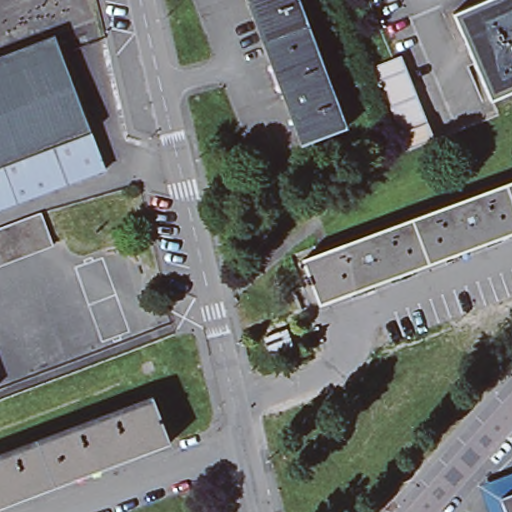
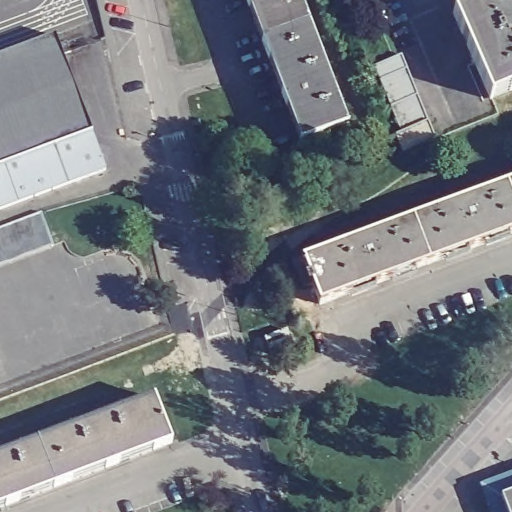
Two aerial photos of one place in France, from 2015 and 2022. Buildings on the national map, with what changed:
unchanged [(348,128),(302,145),(248,0),(300,0),(348,128)]
unchanged [(485,96),(472,63),(465,48),(451,15),(487,0),(512,0),(512,89),(487,100),(485,96)]
unchanged [(53,39),(57,48),(65,45),(67,54),(60,57),(89,137),(0,170),(0,59),(53,39)]
unchanged [(435,144),(402,156),(368,67),(401,55),(435,144)]
unchanged [(102,173),(0,212),(0,170),(89,137),(102,173)]
unchanged [(306,261),(512,183),(512,233),(322,305),(306,261)]
unchanged [(40,212),(52,245),(0,264),(0,227),(40,212)]
unchanged [(290,328),(297,344),(275,353),(268,337),(290,328)]
unchanged [(0,505),(0,453),(152,397),(169,442),(0,505)]
unchanged [(512,512),(496,512),(489,494),(512,486),(512,512)]

